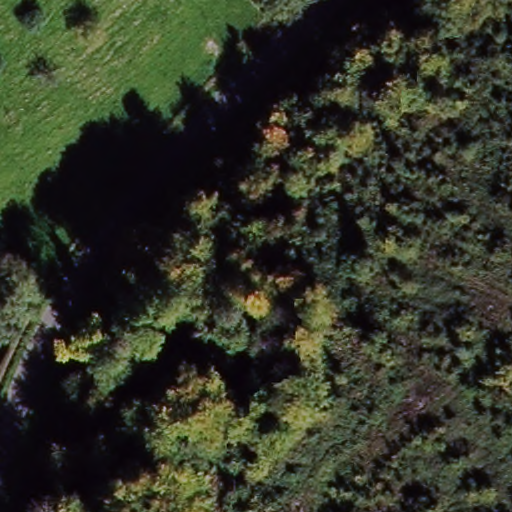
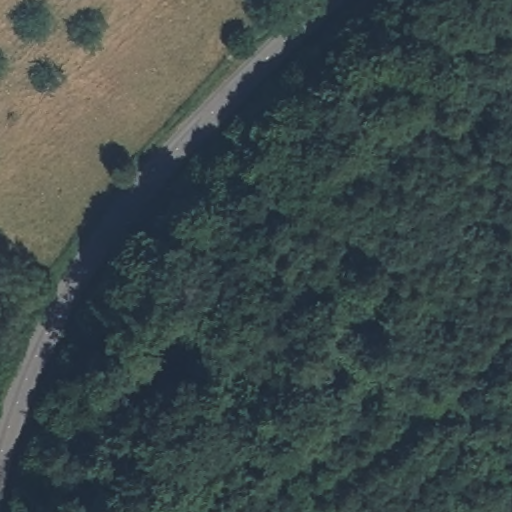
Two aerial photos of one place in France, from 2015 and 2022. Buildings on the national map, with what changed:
[]

